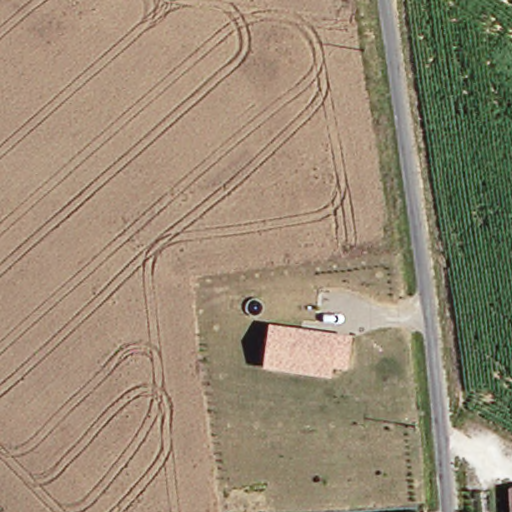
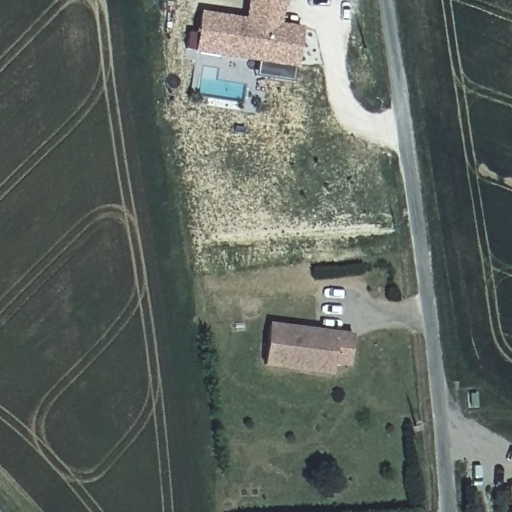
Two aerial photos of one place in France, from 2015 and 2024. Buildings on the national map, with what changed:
new [(281,26),(303,29),(294,84),(256,78),(259,64),(195,54),(201,13),(245,20),(248,0),(286,0),(281,26)]
unchanged [(353,335),(348,365),(333,365),(332,374),(263,365),(268,324),(353,335)]
unchanged [(512,512),(506,512),(505,492),(512,491),(512,512)]

